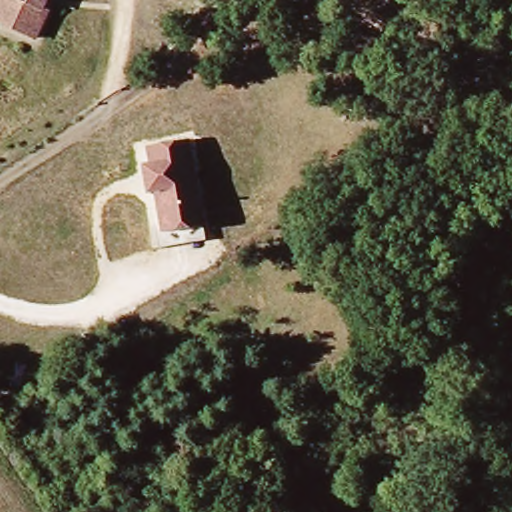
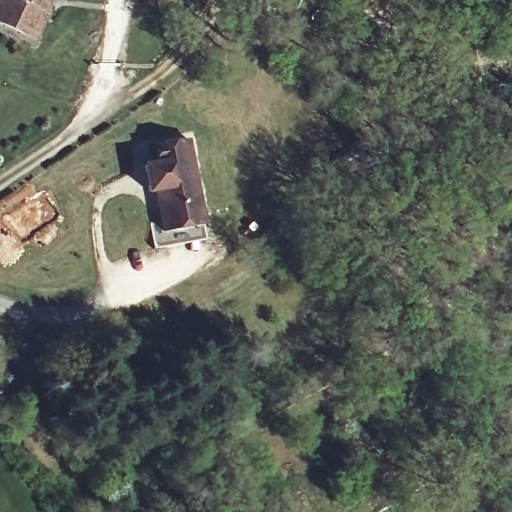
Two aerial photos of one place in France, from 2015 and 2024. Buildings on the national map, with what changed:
unchanged [(37,42),(0,26),(0,4),(1,0),(47,0),(43,10),(48,14),(37,42)]
unchanged [(155,192),(146,194),(142,164),(152,163),(148,144),(193,136),(206,225),(160,232),(155,192)]

